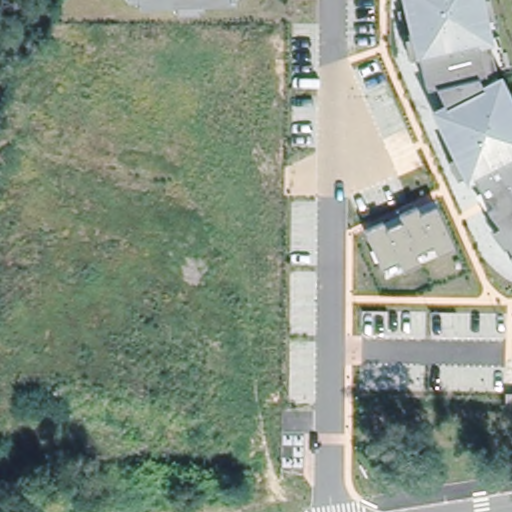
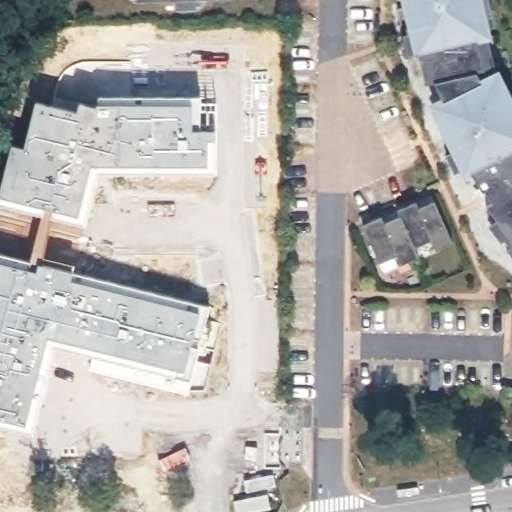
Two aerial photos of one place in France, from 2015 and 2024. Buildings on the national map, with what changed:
unchanged [(486,15),(492,44),(490,44),(497,70),(500,69),(512,94),(512,260),(506,252),(509,249),(505,241),(500,244),(488,227),(496,219),(483,203),(487,199),(472,175),(465,179),(462,172),(453,175),(443,155),(449,151),(427,104),(440,99),(433,85),(426,85),(417,53),(407,55),(402,34),(407,33),(402,11),(397,13),(397,3),(401,0),(400,0),(490,0),(492,14),(486,15)]
new [(11,144),(24,147),(35,100),(76,109),(77,101),(96,105),(97,96),(202,96),(202,109),(215,109),(216,172),(179,170),(97,169),(84,225),(42,214),(0,201),(0,185),(11,144)]
unchanged [(431,194),(452,242),(437,249),(432,241),(415,249),(418,258),(400,264),(396,254),(382,261),(363,224),(431,194)]
new [(30,260),(42,214),(84,225),(79,239),(50,233),(44,257),(75,265),(73,271),(211,308),(199,362),(209,364),(203,386),(192,384),(188,396),(89,371),(92,355),(55,344),(30,432),(0,423),(0,253),(30,260)]

